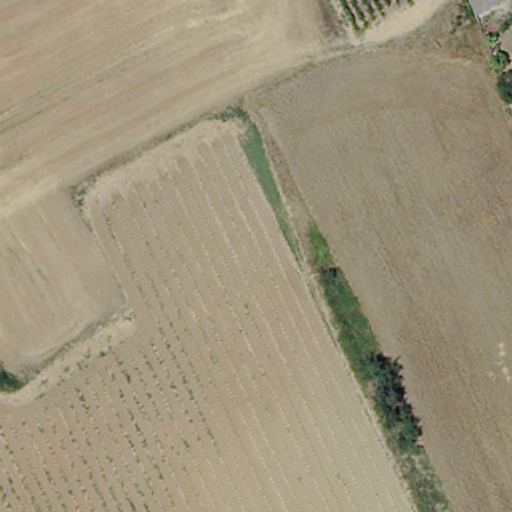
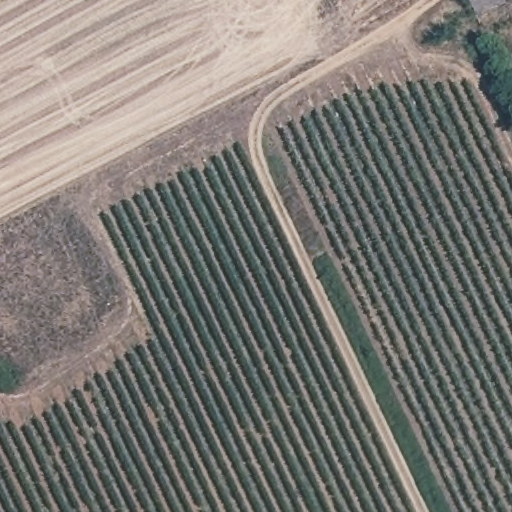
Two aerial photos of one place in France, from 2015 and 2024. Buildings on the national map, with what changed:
unchanged [(469,2),(474,0),(504,0),(506,5),(476,19),(469,2)]

